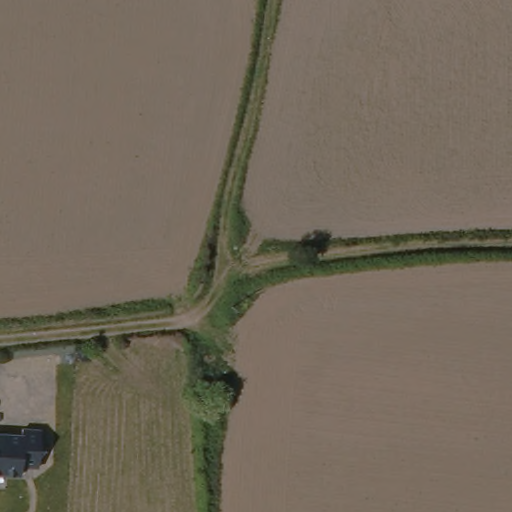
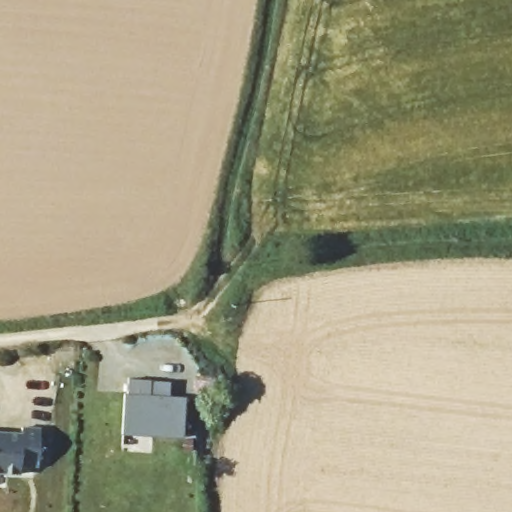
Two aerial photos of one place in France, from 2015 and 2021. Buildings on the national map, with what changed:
new [(127,395),(128,378),(170,381),(170,395),(185,396),(182,438),(122,433),(124,395),(127,395)]
unchanged [(18,429),(40,430),(38,460),(21,458),(18,482),(0,481),(0,434),(17,435),(18,429)]

